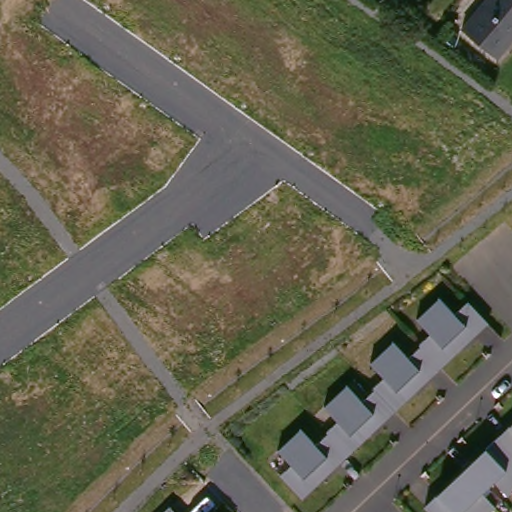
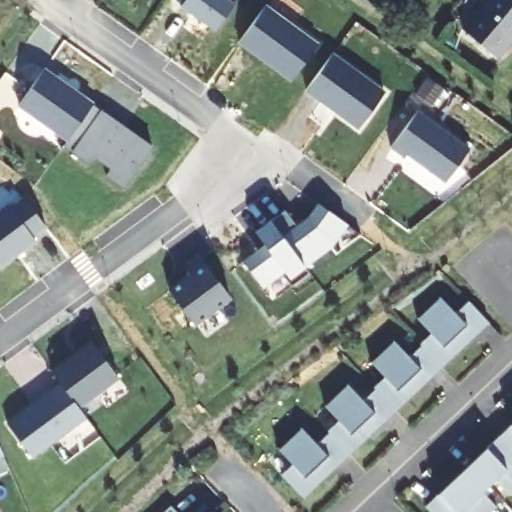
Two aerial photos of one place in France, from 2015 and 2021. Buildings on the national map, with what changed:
new [(181,4),(176,0),(228,0),(234,5),(214,31),(180,7),(181,4)]
unchanged [(465,29),(489,0),(512,0),(512,46),(502,57),(465,29)]
new [(239,43),(266,7),(318,45),(290,81),(239,43)]
new [(306,91),(332,55),(383,92),(357,130),(306,91)]
new [(105,176),(109,169),(93,157),(88,164),(63,145),(67,140),(17,107),(44,70),(152,147),(123,188),(105,176)]
new [(415,106),(467,142),(443,177),(404,150),(402,153),(388,143),(415,106)]
new [(8,204),(11,207),(23,197),(46,229),(33,238),(36,242),(0,268),(0,210),(8,204)]
new [(243,261),(265,246),(255,232),(270,222),(285,212),(295,227),(306,219),(317,203),(348,226),(331,249),(305,267),(309,273),(290,287),(281,275),(263,288),(243,261)]
new [(189,273),(183,266),(197,255),(229,297),(193,323),(167,290),(189,273)]
unchanged [(298,497),(277,474),(288,464),(275,450),(298,428),(312,444),(325,432),(324,431),(335,421),(321,407),(344,385),(359,401),(371,389),(370,388),(381,377),(368,363),(391,342),(406,357),(418,346),(417,345),(428,335),(414,320),(438,299),(452,315),(466,302),(485,323),(298,497)]
new [(86,338),(113,374),(73,404),(46,368),(86,338)]
new [(84,420),(31,457),(7,424),(58,385),(73,404),(84,420)]
unchanged [(487,512),(424,512),(419,507),(512,423),(512,489),(502,497),(501,496),(487,507),(489,510),(487,512)]
unchanged [(168,498),(181,512),(153,512),(168,498)]
unchanged [(204,510),(207,512),(202,512),(204,510)]

